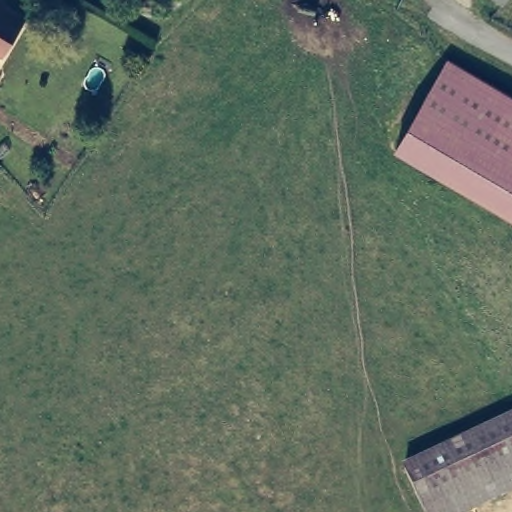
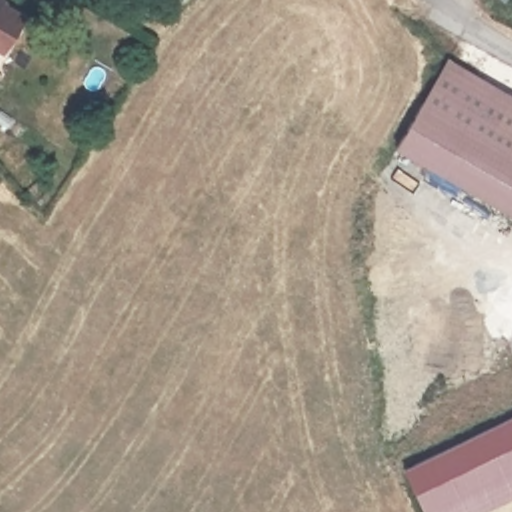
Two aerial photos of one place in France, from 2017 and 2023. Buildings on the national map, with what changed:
unchanged [(0,44),(0,0),(2,0),(25,14),(6,48),(0,44)]
unchanged [(398,144),(448,60),(512,97),(512,211),(398,144)]
unchanged [(512,429),(512,487),(464,512),(427,512),(410,482),(512,429)]

